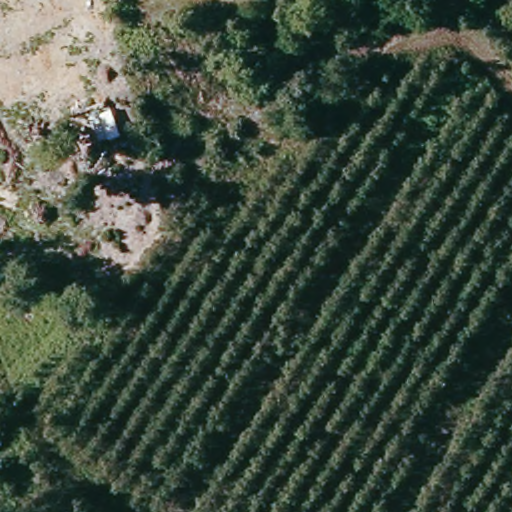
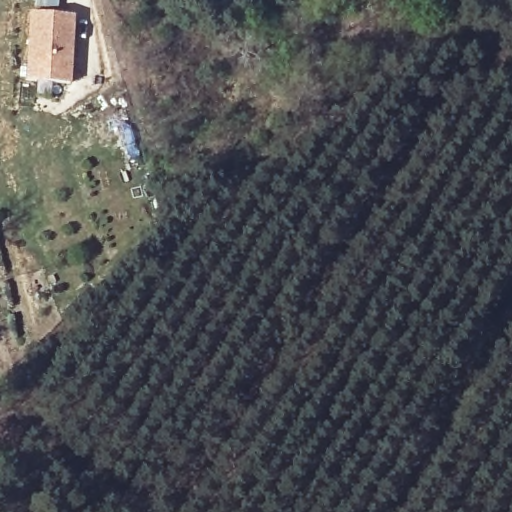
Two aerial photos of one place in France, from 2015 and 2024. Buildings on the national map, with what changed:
new [(29,12),(74,15),(71,82),(26,80),(29,12)]

